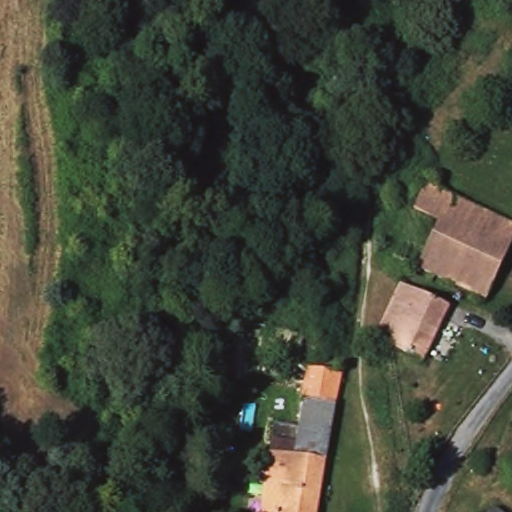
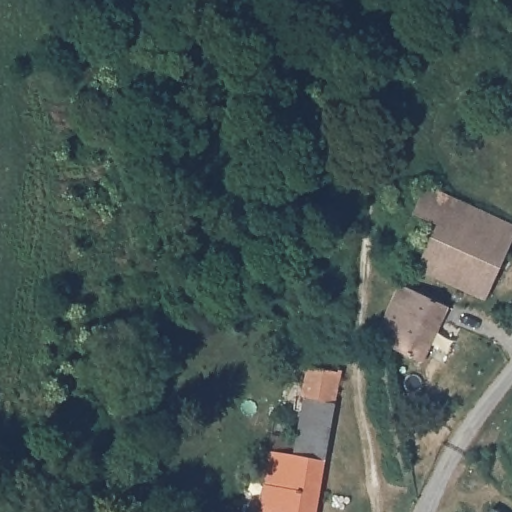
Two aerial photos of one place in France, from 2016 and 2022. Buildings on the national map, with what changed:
unchanged [(473,46),(480,49),(479,56),(470,54),(473,46)]
unchanged [(428,189),(512,228),(512,258),(490,307),(401,264),(395,260),(396,259),(428,189)]
unchanged [(401,289),(448,311),(421,366),(375,343),(401,289)]
unchanged [(275,438),(301,441),(309,403),(315,367),(339,371),(315,498),(313,512),(262,512),(275,438)]

